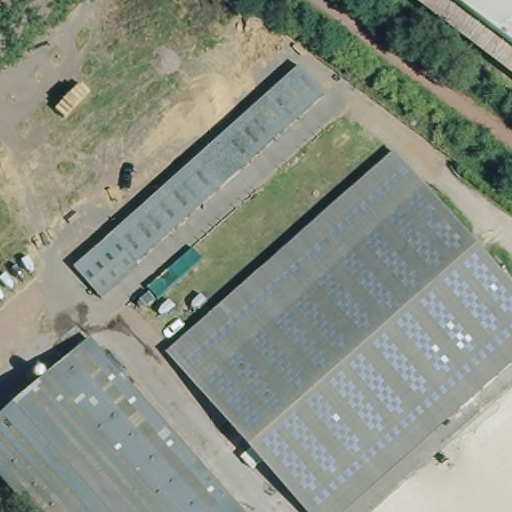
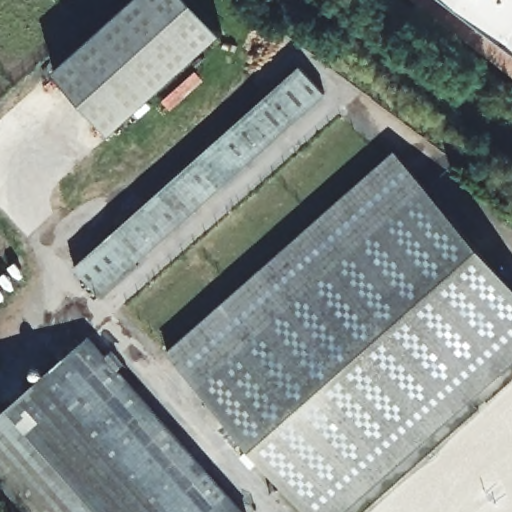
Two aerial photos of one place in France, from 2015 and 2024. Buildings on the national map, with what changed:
new [(223,33),(112,134),(54,71),(133,0),(192,0),(223,33)]
unchanged [(414,0),(512,0),(512,74),(414,0)]
unchanged [(76,270),(209,151),(302,70),(327,99),(103,299),(88,283),(76,270)]
unchanged [(512,292),(512,344),(314,512),(301,512),(153,337),(384,142),(512,292)]
unchanged [(0,414),(92,336),(242,512),(26,512),(0,481),(0,414)]

